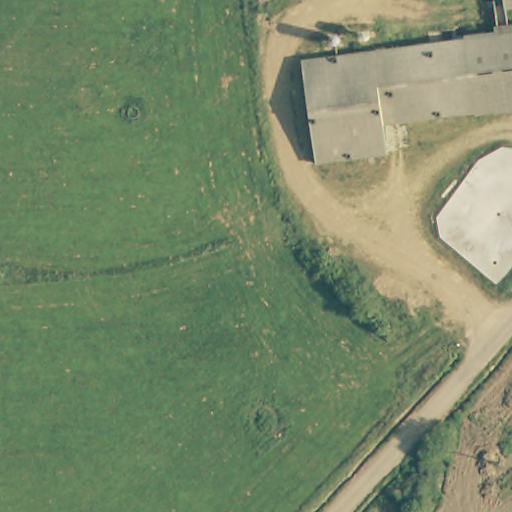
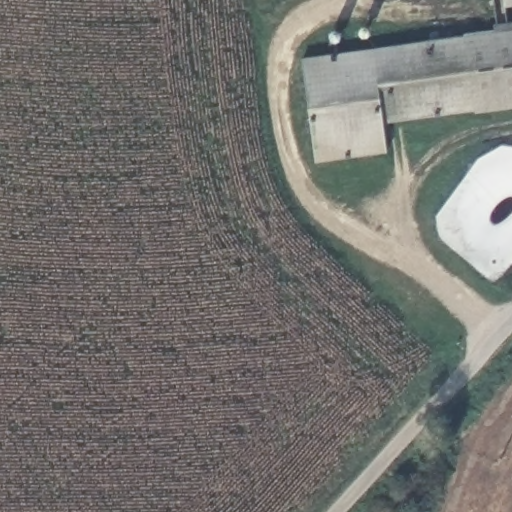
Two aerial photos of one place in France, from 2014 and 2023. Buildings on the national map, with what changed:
unchanged [(501,0),(512,0),(512,7),(503,8),(501,0)]
unchanged [(387,134),(380,134),(384,167),(372,169),(313,176),(298,57),(355,50),(372,48),(512,31),(512,118),(387,134)]

